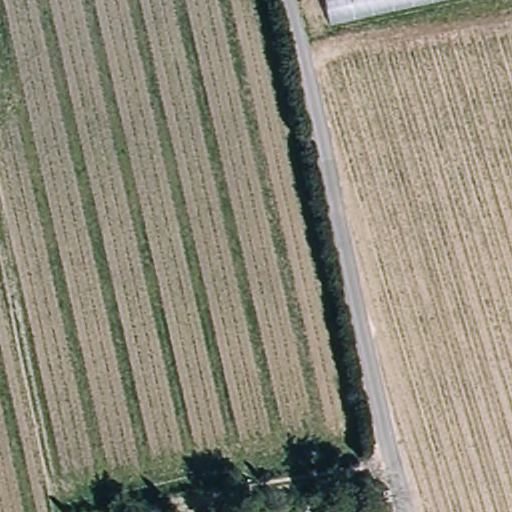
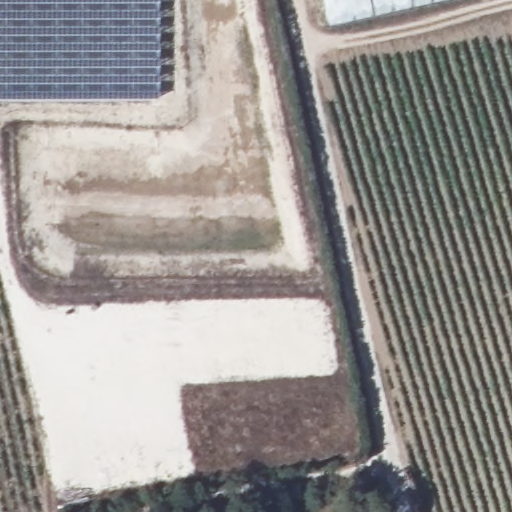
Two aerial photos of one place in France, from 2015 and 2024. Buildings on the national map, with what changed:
new [(158,0),(158,96),(0,97),(0,0),(158,0)]
unchanged [(324,0),(454,0),(329,28),(324,0)]

